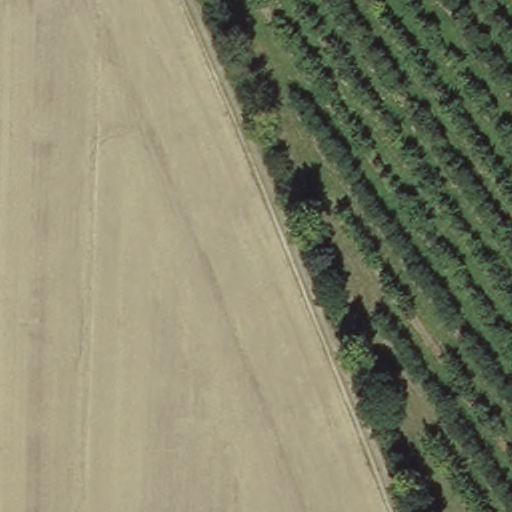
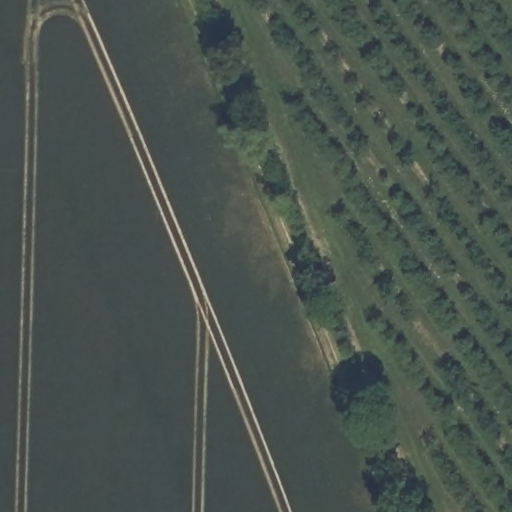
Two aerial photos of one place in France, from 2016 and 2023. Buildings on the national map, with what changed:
[]

